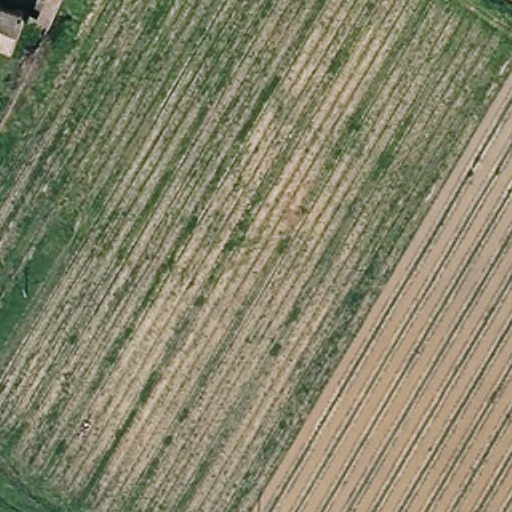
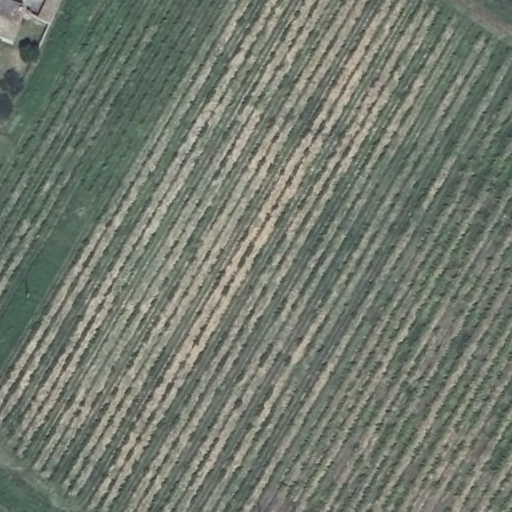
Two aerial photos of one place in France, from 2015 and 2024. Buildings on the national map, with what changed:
unchanged [(46,34),(34,29),(49,0),(62,0),(46,34)]
unchanged [(23,18),(10,47),(0,43),(0,8),(23,18)]

